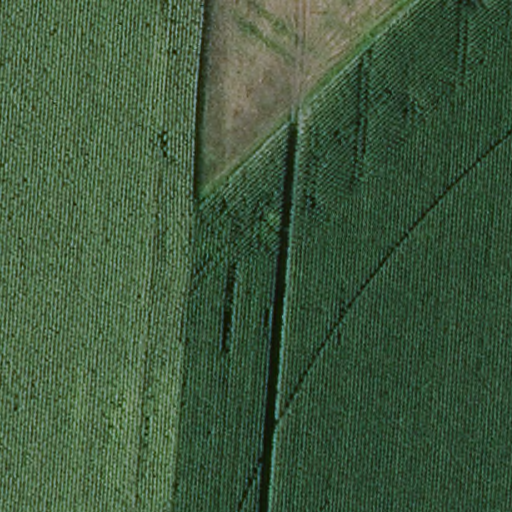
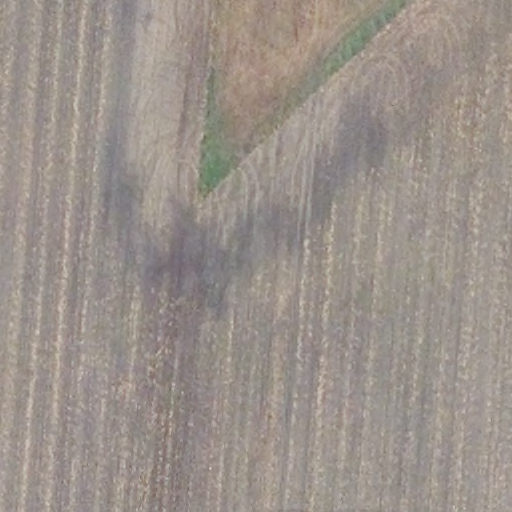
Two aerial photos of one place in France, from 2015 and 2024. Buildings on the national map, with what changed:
[]

